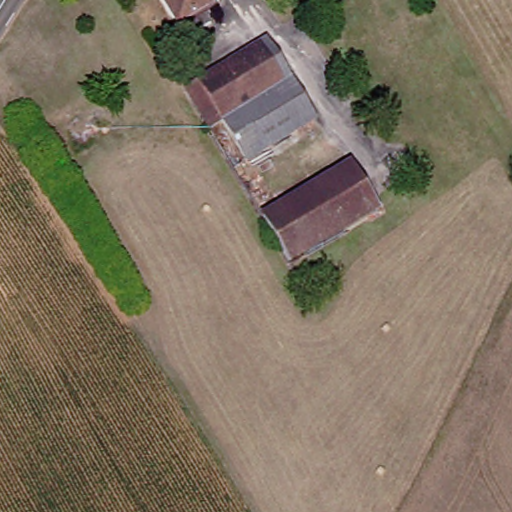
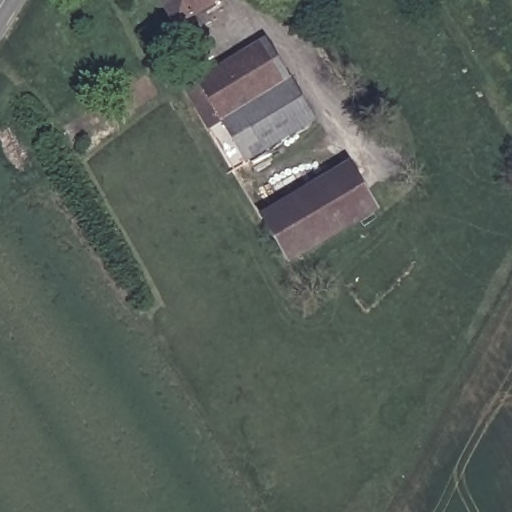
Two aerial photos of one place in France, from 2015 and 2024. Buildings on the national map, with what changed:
unchanged [(184,35),(164,0),(224,0),(229,9),(184,35)]
unchanged [(192,91),(262,49),(273,43),(297,84),(320,122),(250,164),(226,122),(215,130),(206,116),(192,91)]
unchanged [(355,166),(382,214),(317,250),(289,204),(355,166)]
unchanged [(265,217),(289,204),(317,250),(294,263),(265,217)]

